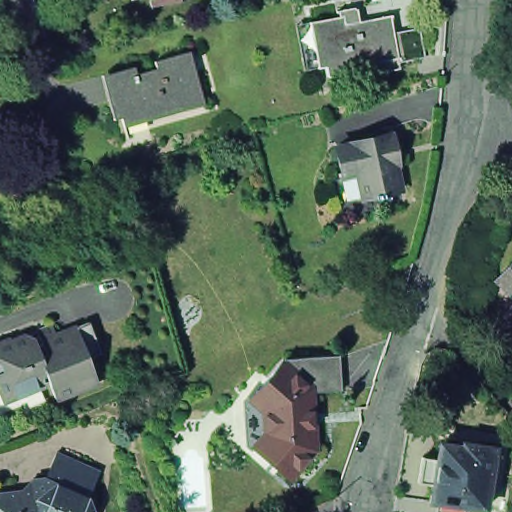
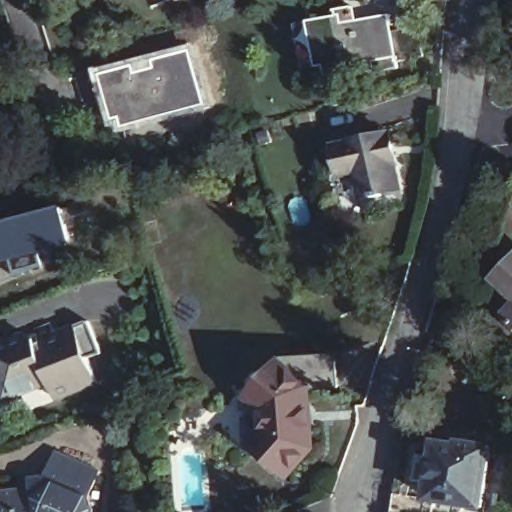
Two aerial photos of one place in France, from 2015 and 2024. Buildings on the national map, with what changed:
unchanged [(92,6),(91,0),(116,0),(110,2),(92,6)]
unchanged [(163,0),(174,0),(163,3),(163,0)]
unchanged [(325,66),(317,67),(309,22),(317,20),(338,16),(337,10),(353,7),(357,21),(392,15),(392,17),(393,32),(419,27),(425,57),(399,61),(399,62),(397,62),(396,57),(375,62),(376,66),(372,67),(352,71),(350,71),(327,76),(325,66)]
unchanged [(140,62),(142,69),(162,64),(160,56),(196,46),(210,100),(153,116),(150,106),(120,115),(108,71),(140,62)]
unchanged [(387,136),(390,146),(394,145),(397,162),(394,164),(400,190),(382,193),(383,196),(375,198),(375,195),(363,197),(357,172),(342,175),(335,147),(387,136)]
new [(57,207),(67,244),(44,250),(50,269),(0,289),(0,221),(57,207)]
unchanged [(512,272),(507,267),(512,262),(512,272)]
unchanged [(512,283),(512,292),(507,288),(512,283)]
unchanged [(512,312),(512,321),(507,317),(512,312)]
unchanged [(25,335),(35,340),(38,345),(43,343),(38,330),(52,325),(57,335),(90,322),(102,353),(90,358),(99,382),(57,399),(50,381),(45,382),(45,385),(5,401),(0,387),(0,373),(5,371),(0,360),(0,345),(25,335)]
unchanged [(285,358),(338,355),(340,388),(310,391),(311,404),(305,411),(306,426),(312,431),(314,448),(289,477),(252,445),(264,432),(262,410),(250,398),(285,358)]
unchanged [(395,494),(428,499),(431,483),(417,481),(421,456),(435,458),(438,442),(461,447),(462,442),(492,447),(482,508),(466,505),(465,512),(392,512),(395,494)]
unchanged [(35,491),(33,478),(46,477),(57,452),(100,471),(88,497),(93,511),(93,512),(0,512),(0,494),(35,491)]

